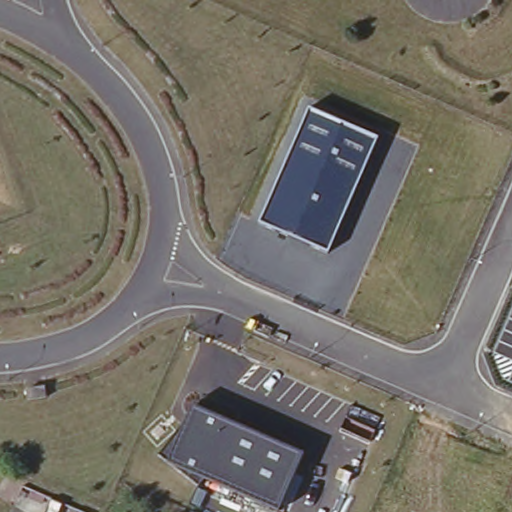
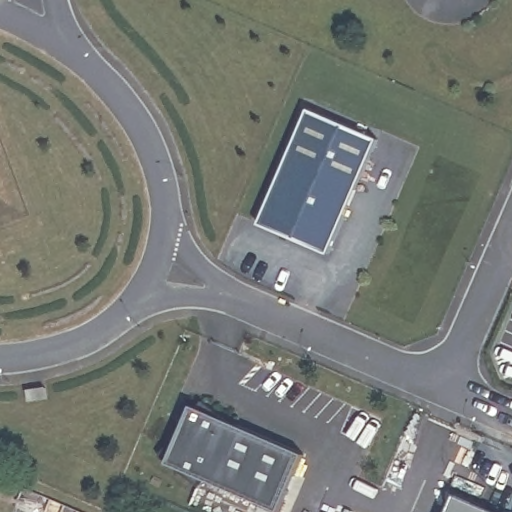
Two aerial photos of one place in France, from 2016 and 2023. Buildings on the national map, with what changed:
unchanged [(328,252),(259,223),(310,109),(379,140),(328,252)]
unchanged [(280,511),(203,477),(197,486),(157,452),(179,429),(192,408),(303,455),(280,511)]
new [(503,512),(450,512),(457,493),(503,512)]

